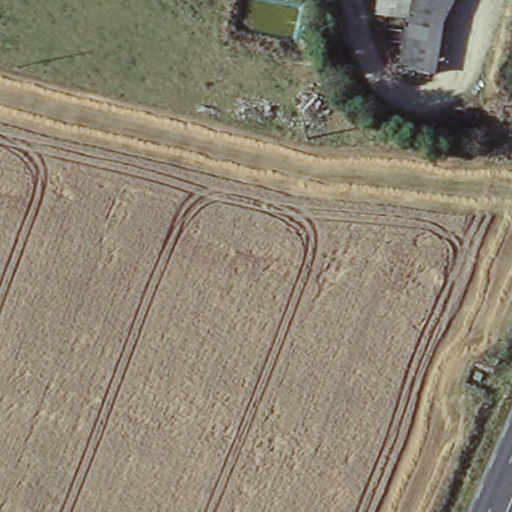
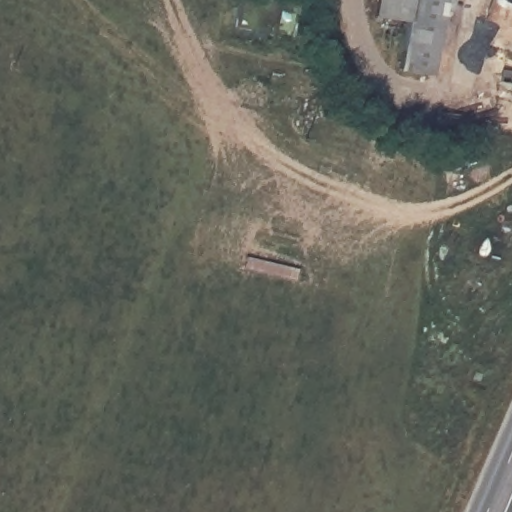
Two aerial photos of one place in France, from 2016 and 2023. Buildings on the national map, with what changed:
unchanged [(426,76),(396,70),(404,21),(371,16),(374,0),(438,0),(426,76)]
unchanged [(450,80),(426,76),(438,0),(463,0),(450,80)]

